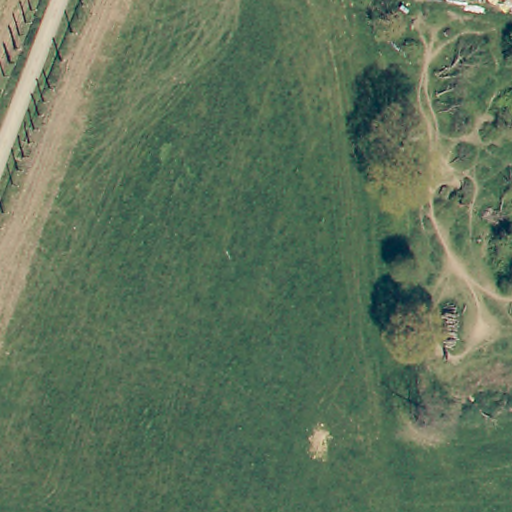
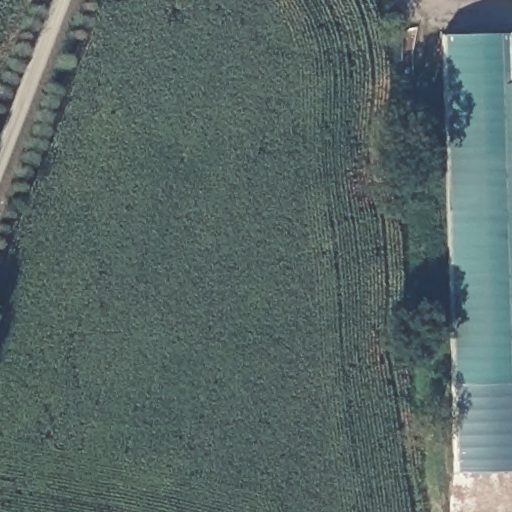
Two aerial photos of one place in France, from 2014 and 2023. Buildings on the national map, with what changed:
new [(450,385),(442,35),(512,33),(512,384),(450,385)]

